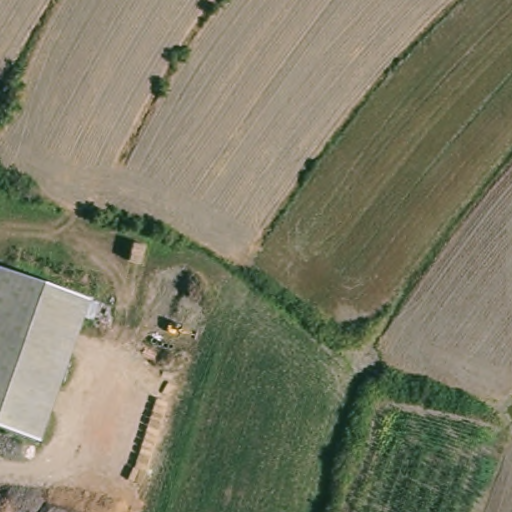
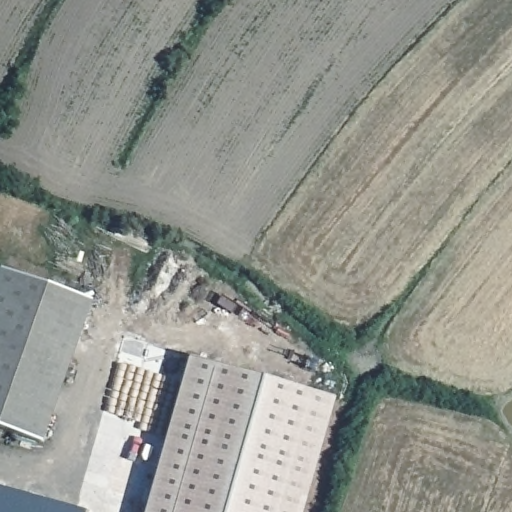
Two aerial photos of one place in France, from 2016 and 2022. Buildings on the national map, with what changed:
unchanged [(87,301),(40,445),(0,431),(0,271),(87,301)]
new [(332,398),(300,512),(141,512),(185,356),(332,398)]

